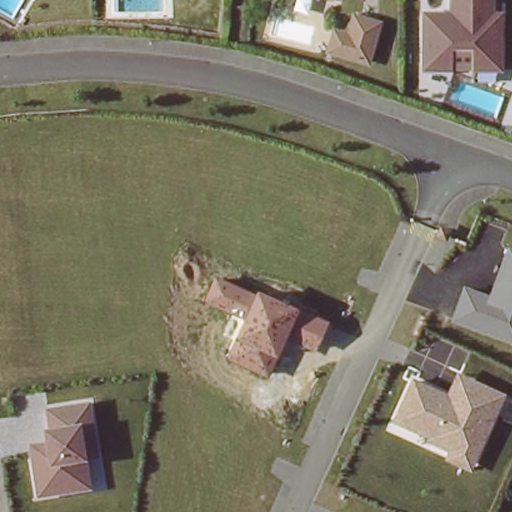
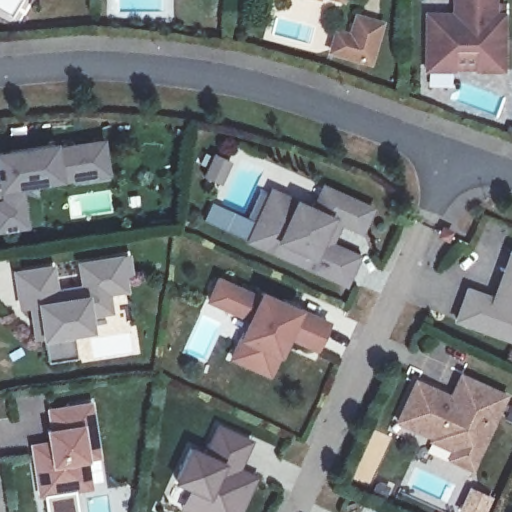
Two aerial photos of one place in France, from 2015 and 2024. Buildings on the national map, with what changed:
unchanged [(332,0),(344,0),(343,3),(332,0)]
unchanged [(510,5),(512,53),(512,69),(478,72),(476,48),(455,50),(456,69),(429,72),(425,15),(453,14),(453,0),(500,0),(500,5),(510,5)]
unchanged [(372,67),(327,54),(334,26),(347,29),(353,11),(383,21),(372,67)]
new [(0,210),(0,207),(13,205),(10,190),(5,191),(0,155),(60,146),(62,152),(109,144),(114,177),(87,181),(86,177),(66,179),(66,180),(30,187),(37,229),(4,234),(0,210)]
new [(274,203),(315,221),(326,199),(374,221),(364,244),(342,234),(333,257),(361,269),(348,297),(251,254),(274,203)]
unchanged [(489,296),(509,247),(512,248),(512,341),(452,322),(465,287),(489,296)]
new [(50,371),(47,359),(45,346),(38,348),(35,329),(33,315),(22,317),(17,285),(54,279),(58,303),(85,299),(83,285),(82,279),(130,271),(133,289),(126,289),(128,304),(116,305),(110,307),(113,325),(91,329),(93,343),(75,345),(77,354),(78,366),(50,371)]
unchanged [(217,277),(329,322),(316,349),(286,337),(270,377),(227,359),(244,321),(206,300),(217,277)]
unchanged [(448,394),(459,373),(512,398),(512,423),(497,417),(472,473),(445,462),(449,452),(421,441),(422,437),(393,424),(414,378),(448,394)]
unchanged [(97,457),(85,458),(89,488),(40,496),(31,445),(47,442),(47,429),(45,411),(88,403),(97,457)]
new [(241,483),(252,488),(242,512),(201,512),(208,496),(179,483),(193,451),(208,457),(221,429),(253,444),(241,472),(245,474),(241,483)]

